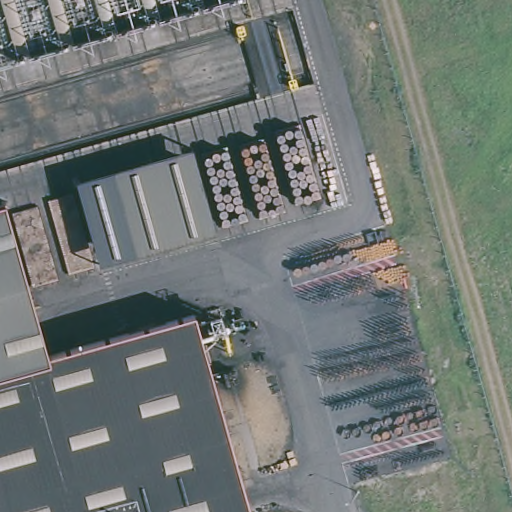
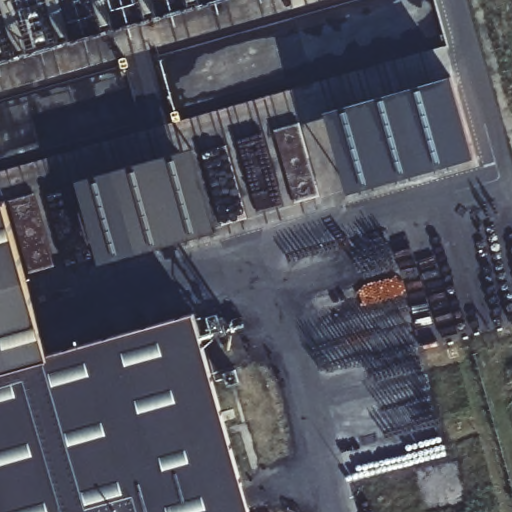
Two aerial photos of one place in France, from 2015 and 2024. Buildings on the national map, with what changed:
unchanged [(0,57),(0,0),(224,0),(0,57)]
new [(474,155),(349,194),(326,112),(450,74),(474,155)]
unchanged [(188,151),(212,232),(132,252),(110,173),(188,151)]
unchanged [(132,252),(101,263),(76,180),(110,173),(132,252)]
unchanged [(6,204),(45,360),(0,372),(0,205),(6,204)]
unchanged [(45,360),(194,320),(246,512),(0,512),(0,372),(45,360)]

